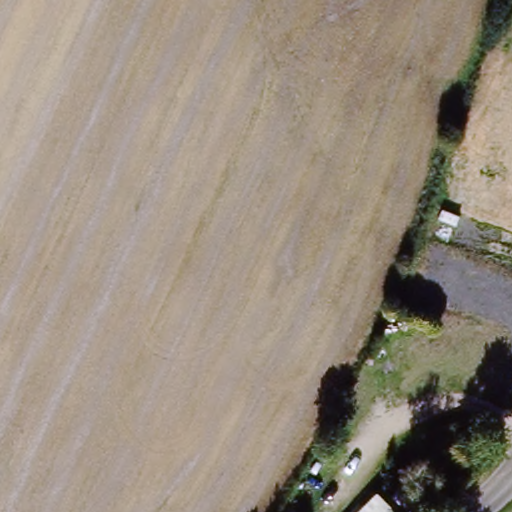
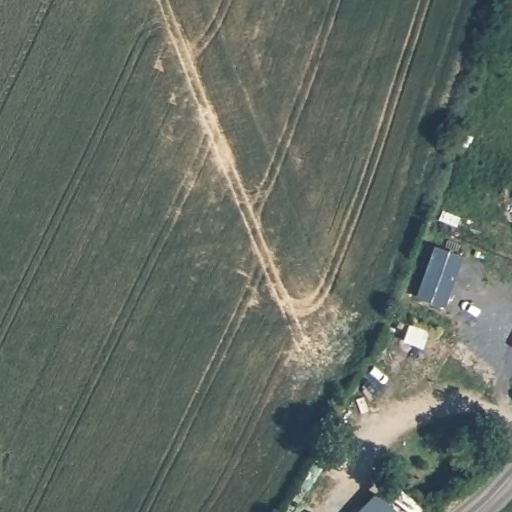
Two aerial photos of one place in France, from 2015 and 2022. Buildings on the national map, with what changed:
new [(465,255),(445,308),(416,298),(435,245),(465,255)]
unchanged [(396,512),(360,512),(379,493),(396,512)]

